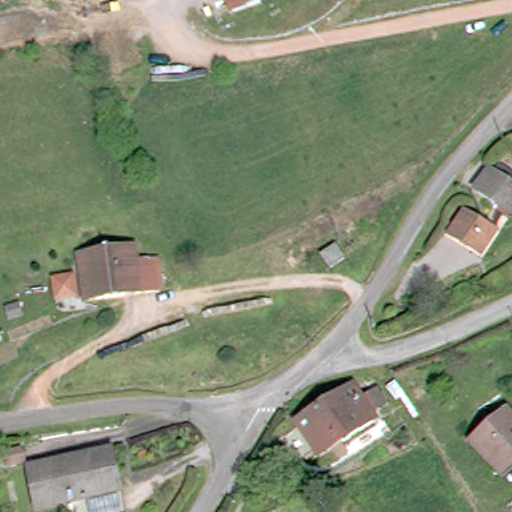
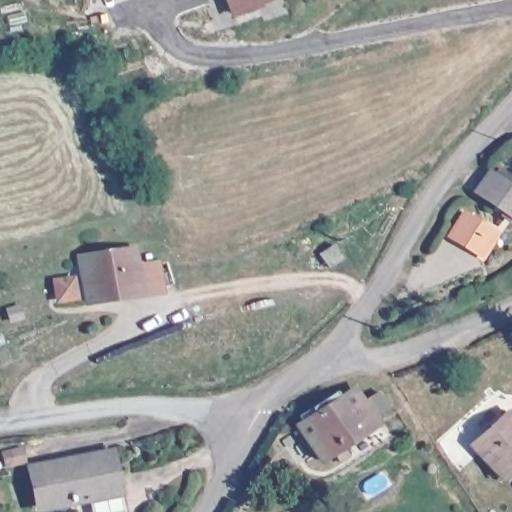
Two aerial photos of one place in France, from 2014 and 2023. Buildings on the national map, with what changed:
unchanged [(237,15),(232,0),(283,0),(237,15)]
unchanged [(473,192),(490,166),(512,183),(512,219),(473,192)]
unchanged [(475,253),(450,236),(466,212),(490,228),(475,253)]
unchanged [(143,291),(81,298),(76,256),(139,250),(143,291)]
unchanged [(350,263),(335,274),(326,260),(340,251),(350,263)]
unchanged [(357,404),(370,396),(381,415),(370,423),(373,427),(341,448),(347,458),(335,466),(328,456),(317,463),(295,428),(350,394),(357,404)]
unchanged [(500,408),(512,421),(512,460),(501,471),(470,439),(500,408)]
unchanged [(29,442),(30,459),(6,461),(5,451),(10,451),(9,444),(29,442)]
unchanged [(82,467),(80,451),(110,447),(112,463),(120,512),(39,512),(33,473),(82,467)]

